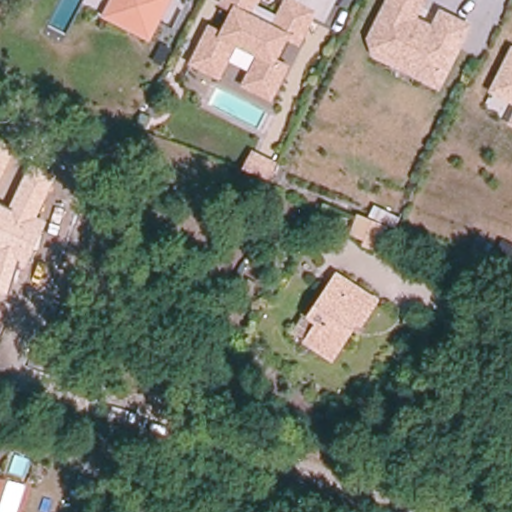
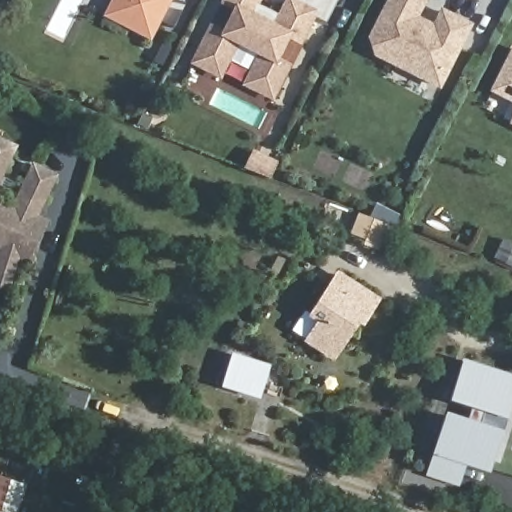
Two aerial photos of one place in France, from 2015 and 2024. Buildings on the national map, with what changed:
unchanged [(150,42),(100,17),(109,0),(172,0),(150,42)]
unchanged [(315,22),(300,48),(295,47),(288,62),(290,64),(273,100),(239,85),(255,57),(236,49),(219,79),(190,66),(206,23),(219,28),(229,13),(219,6),(221,0),(260,0),(257,6),(276,14),(283,0),(337,0),(326,25),(315,22)]
unchanged [(440,11),(471,25),(438,90),(372,58),(366,35),(386,0),(427,0),(420,17),(432,23),(440,11)]
unchanged [(512,46),(512,103),(487,92),(512,46)]
unchanged [(512,121),(512,126),(510,125),(512,121)]
unchanged [(16,147),(0,181),(0,139),(16,147)]
unchanged [(9,208),(31,163),(56,175),(36,216),(47,221),(25,267),(19,264),(9,293),(0,290),(0,203),(9,208)]
unchanged [(376,253),(350,235),(356,213),(386,225),(376,253)]
unchanged [(360,324),(356,322),(333,357),(308,341),(321,321),(312,315),(338,276),(377,300),(360,324)]
new [(243,394),(217,386),(227,356),(262,367),(255,390),(253,397),(243,394)]
new [(488,472),(432,454),(445,413),(467,420),(471,408),(450,401),(463,359),(512,375),(512,402),(507,418),(485,411),(482,424),(501,431),(488,472)]
unchanged [(0,505),(0,479),(7,482),(0,505)]

